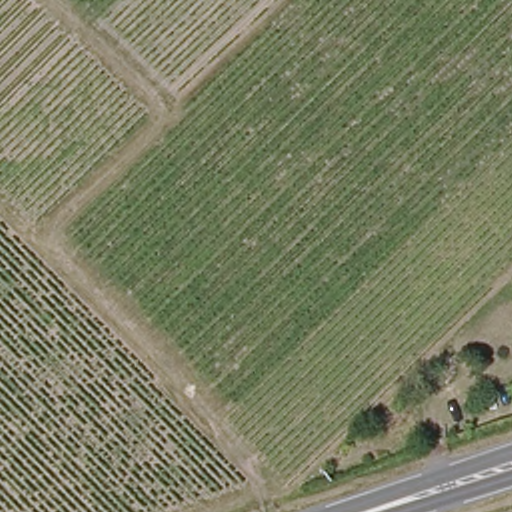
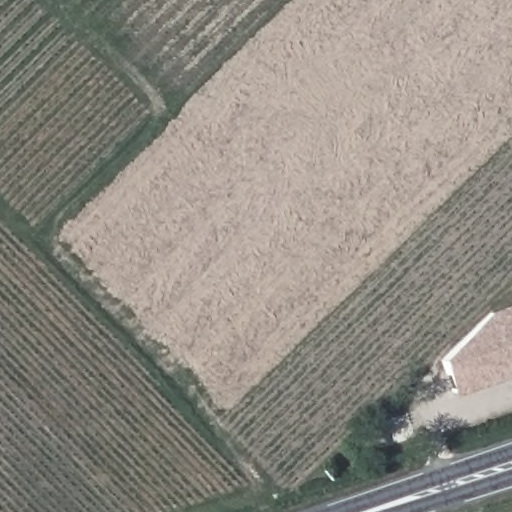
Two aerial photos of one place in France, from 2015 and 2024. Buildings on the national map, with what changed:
new [(465,344),(461,334),(478,323),(475,316),(512,303),(512,375),(453,395),(439,353),(465,344)]

